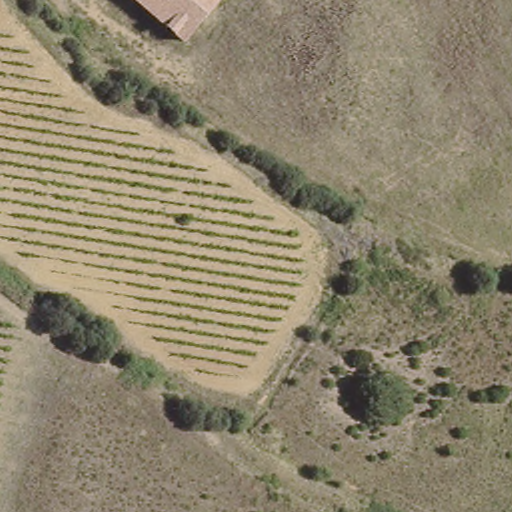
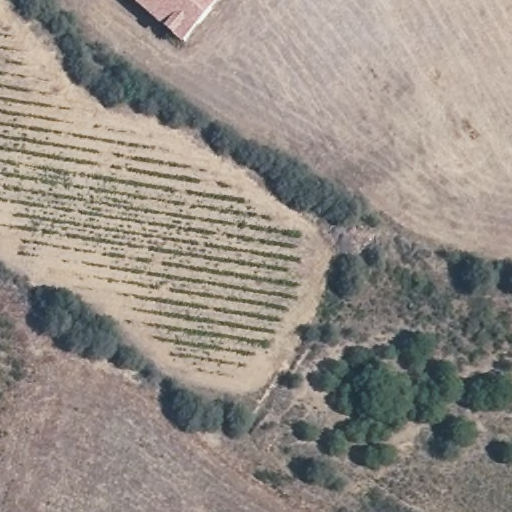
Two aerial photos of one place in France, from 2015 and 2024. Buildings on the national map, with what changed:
unchanged [(140,0),(219,0),(185,40),(140,0)]

